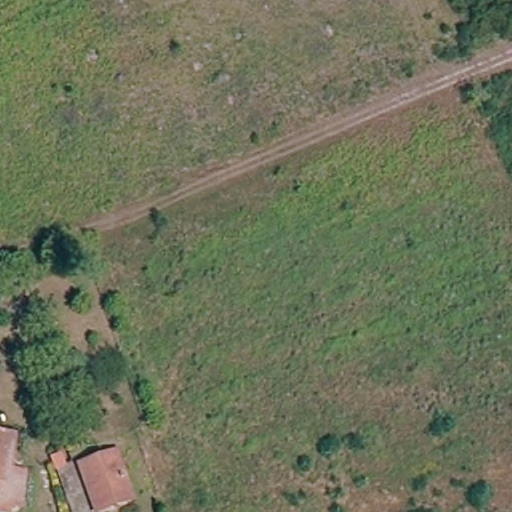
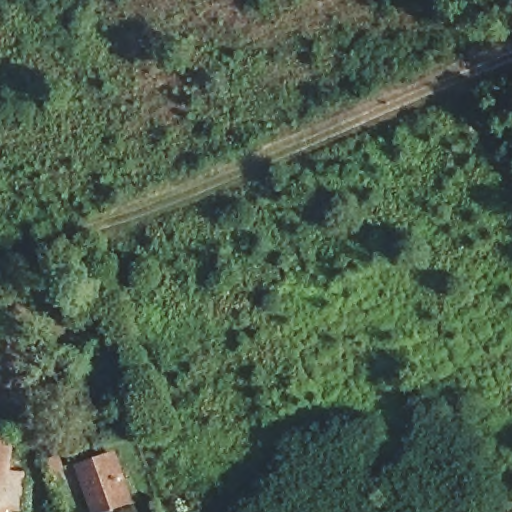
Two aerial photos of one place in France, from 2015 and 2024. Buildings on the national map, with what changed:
unchanged [(13,447),(10,482),(26,483),(24,512),(0,512),(0,445),(13,447)]
unchanged [(115,461),(131,510),(124,512),(92,512),(80,474),(99,467),(115,461)]

